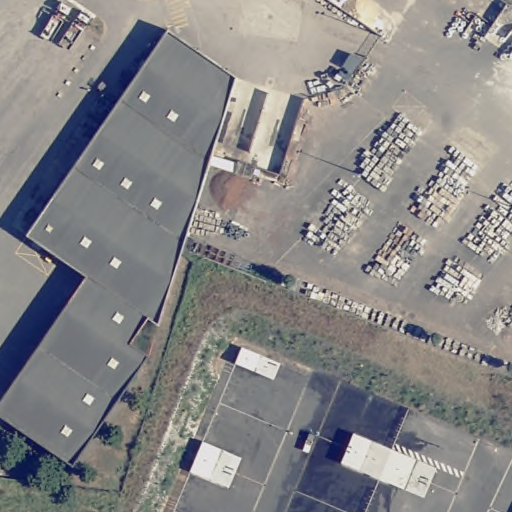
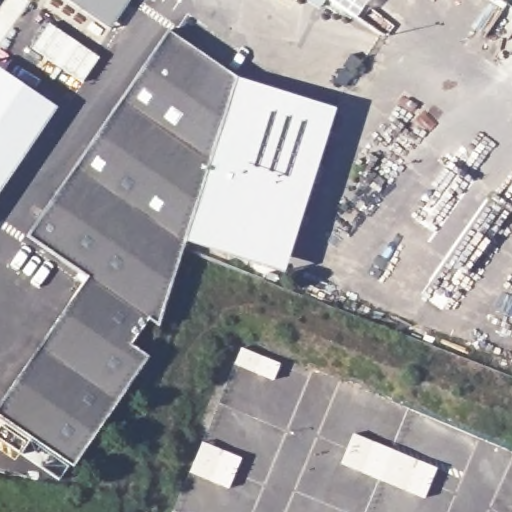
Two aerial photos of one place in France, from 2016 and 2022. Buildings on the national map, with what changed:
new [(109,30),(64,0),(129,0),(109,30)]
unchanged [(21,232),(167,30),(238,78),(161,327),(148,320),(131,345),(147,358),(71,468),(0,419),(0,389),(63,298),(81,273),(21,232)]
new [(238,78),(331,107),(282,270),(187,242),(238,78)]
demolished [(232,174),(235,162),(252,167),(249,179),(232,174)]
unchanged [(341,463),(356,432),(435,466),(423,496),(341,463)]
unchanged [(227,488),(189,473),(201,440),(240,456),(227,488)]

